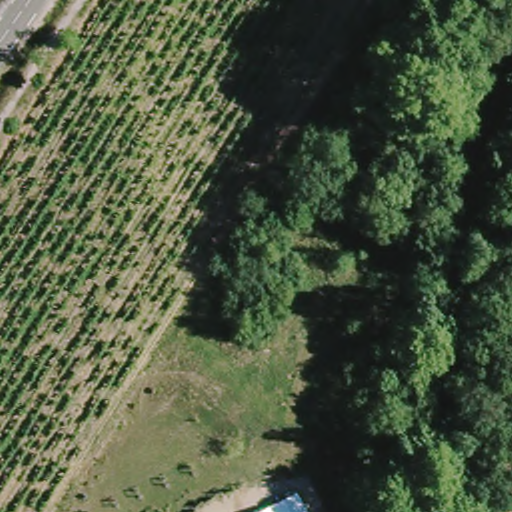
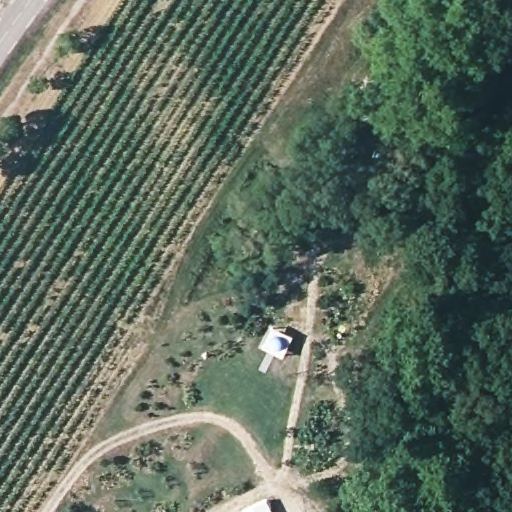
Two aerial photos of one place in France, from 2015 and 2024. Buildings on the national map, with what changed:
unchanged [(297,493),(307,512),(259,512),(297,493)]

